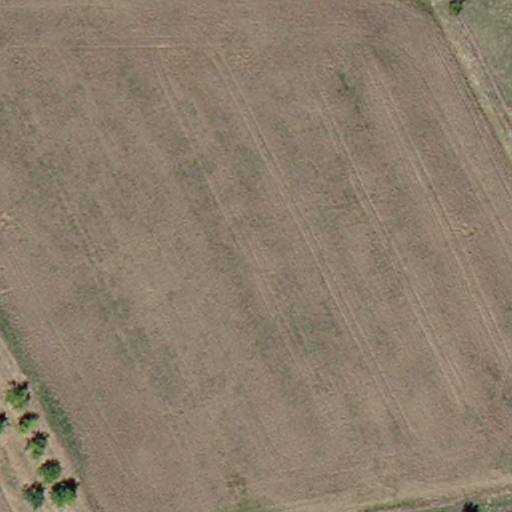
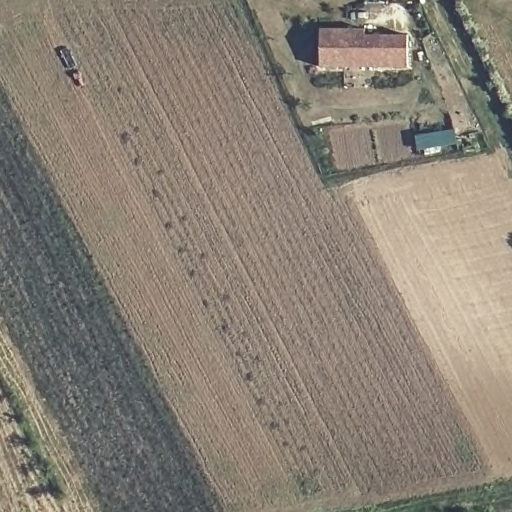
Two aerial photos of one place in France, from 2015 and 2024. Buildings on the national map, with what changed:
new [(409,66),(319,67),(319,27),(365,28),(366,34),(407,33),(409,66)]

